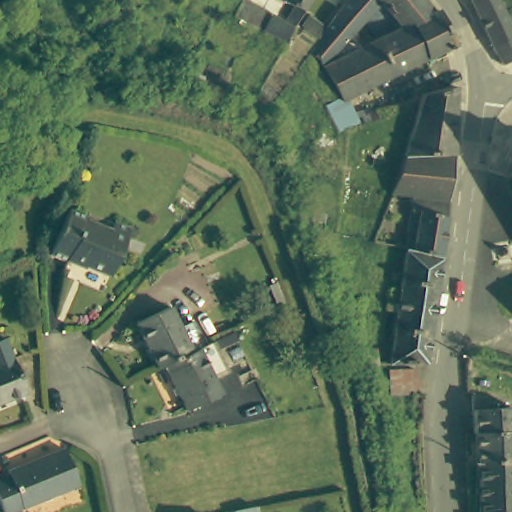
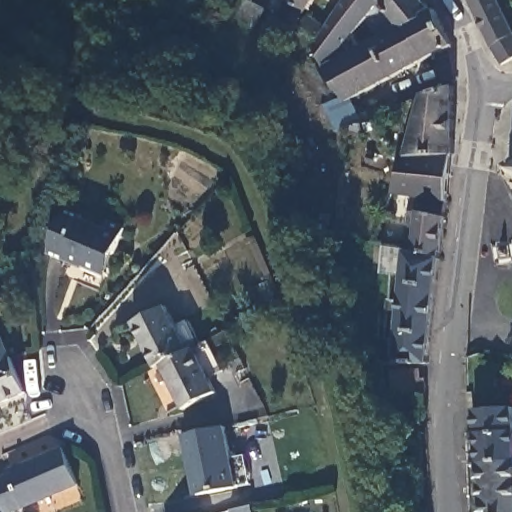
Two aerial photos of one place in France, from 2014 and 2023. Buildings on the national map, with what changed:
unchanged [(259,0),(271,7),(260,23),(239,10),(246,0),(259,0)]
unchanged [(279,11),(290,17),(301,2),(298,0),(316,0),(301,21),(291,40),(269,26),(279,11)]
unchanged [(388,0),(328,61),(318,45),(325,35),(351,0),(388,0)]
unchanged [(441,8),(419,20),(421,25),(433,55),(357,94),(364,109),(383,104),(384,106),(387,114),(363,119),(350,125),(345,127),(329,100),(338,97),(339,97),(342,96),(347,94),(328,62),(406,22),(390,0),(434,0),(439,6),(441,8)]
unchanged [(491,54),(470,6),(478,0),(494,0),(512,38),(512,66),(502,71),(491,54)]
unchanged [(441,8),(439,6),(443,5),(461,41),(451,45),(433,55),(421,25),(419,20),(441,8)]
unchanged [(322,19),(315,27),(314,29),(304,23),(312,12),(322,19)]
unchanged [(181,75),(186,66),(223,86),(217,97),(181,75)]
unchanged [(426,95),(442,90),(456,86),(455,148),(448,200),(416,196),(391,194),(425,97),(426,95)]
unchanged [(508,182),(508,176),(512,177),(512,183),(508,182)]
unchanged [(403,278),(406,250),(413,251),(421,210),(414,209),(416,196),(448,200),(440,257),(437,285),(426,363),(392,365),(403,278)]
unchanged [(71,265),(53,258),(72,213),(89,220),(88,225),(111,233),(114,226),(132,233),(123,255),(116,260),(109,276),(73,261),(71,265)]
unchanged [(373,230),(384,234),(381,245),(369,242),(373,230)]
unchanged [(326,243),(327,255),(315,255),(314,244),(326,243)]
unchanged [(154,371),(132,328),(166,311),(188,355),(154,371)]
unchanged [(29,396),(0,409),(0,339),(4,337),(29,396)]
unchanged [(195,353),(216,398),(182,415),(161,370),(195,353)]
unchanged [(426,393),(394,395),(393,368),(420,367),(421,378),(426,377),(426,393)]
unchanged [(479,464),(478,414),(477,410),(512,409),(512,462),(479,464)]
new [(184,465),(178,432),(220,424),(226,455),(240,452),(246,482),(231,485),(192,492),(189,493),(184,465)]
unchanged [(59,447),(77,483),(19,512),(3,512),(0,506),(0,480),(7,477),(6,475),(59,447)]
unchanged [(479,464),(512,462),(512,512),(482,512),(479,464)]

